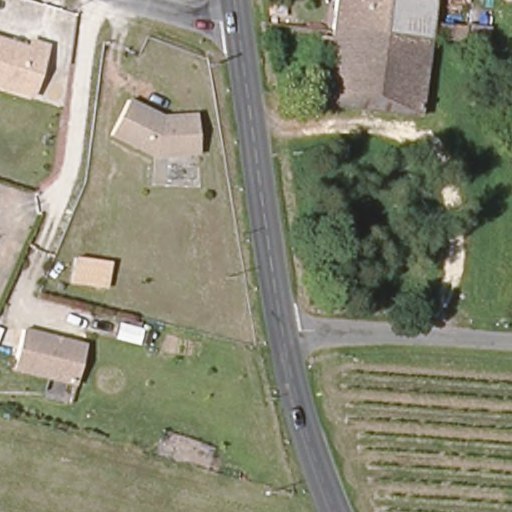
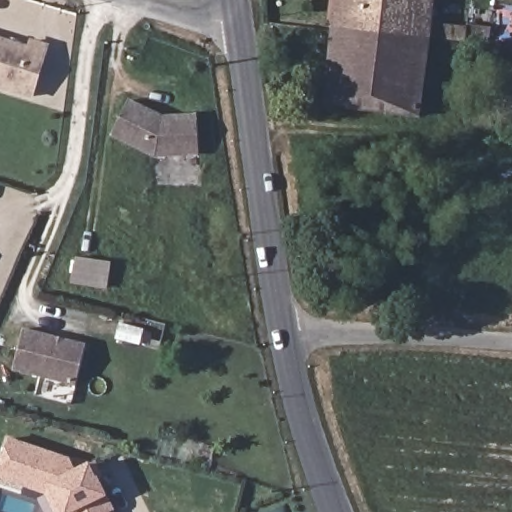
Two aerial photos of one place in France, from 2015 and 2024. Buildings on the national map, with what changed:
unchanged [(435,0),(433,19),(468,24),(468,41),(430,36),(335,27),(339,0),(435,0)]
unchanged [(325,103),(335,27),(430,36),(421,115),(387,111),(356,107),(325,103)]
unchanged [(0,87),(0,40),(26,47),(27,40),(44,45),(30,95),(0,87)]
unchanged [(129,98),(162,114),(196,110),(199,154),(154,157),(110,134),(129,98)]
new [(108,259),(105,284),(70,279),(73,254),(108,259)]
unchanged [(86,342),(76,384),(14,370),(24,327),(86,342)]
new [(114,512),(54,512),(46,496),(0,480),(0,469),(9,443),(78,467),(90,464),(115,511),(114,512)]

